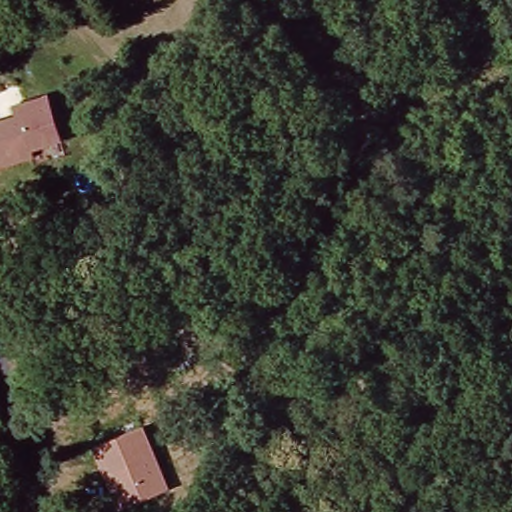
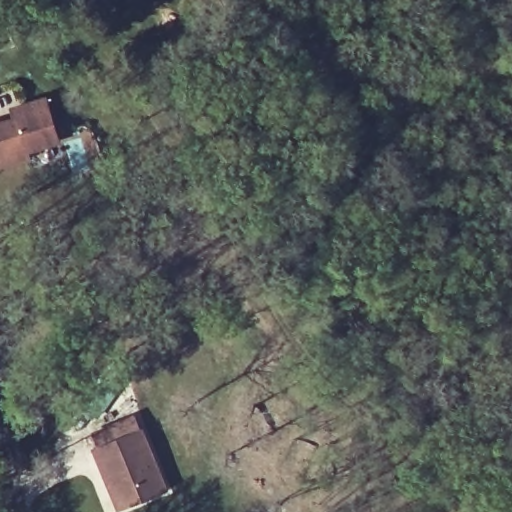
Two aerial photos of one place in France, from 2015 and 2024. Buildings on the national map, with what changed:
unchanged [(48,99),(61,143),(28,152),(30,158),(0,167),(0,122),(17,118),(14,109),(48,99)]
unchanged [(103,466),(97,449),(144,430),(168,493),(134,507),(122,512),(121,512),(103,466)]

